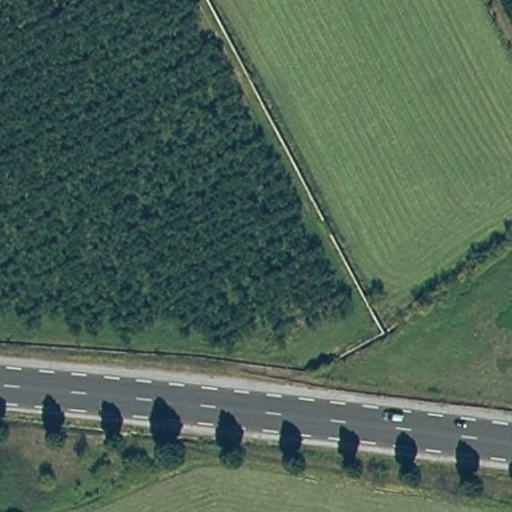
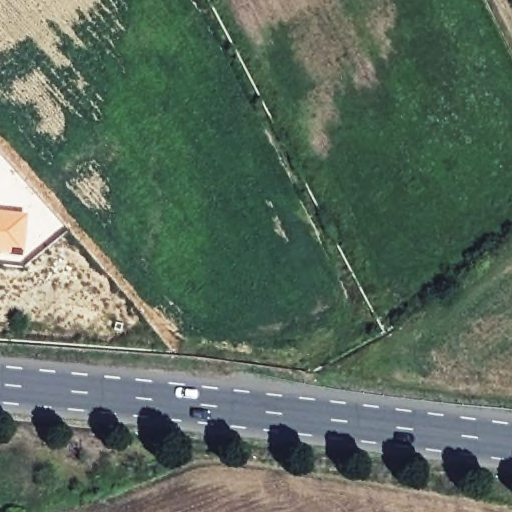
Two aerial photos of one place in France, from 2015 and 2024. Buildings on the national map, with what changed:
new [(0,252),(0,213),(24,216),(21,255),(0,252)]

